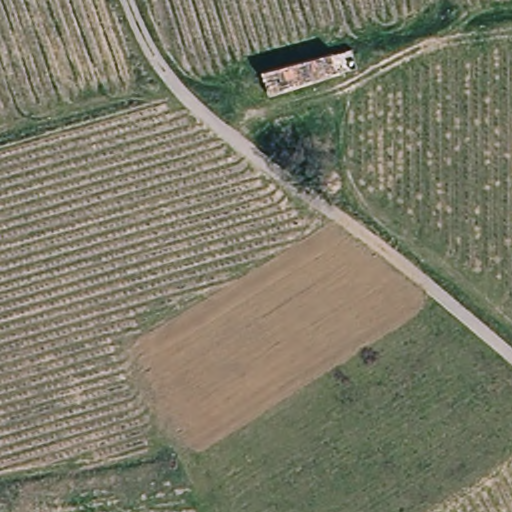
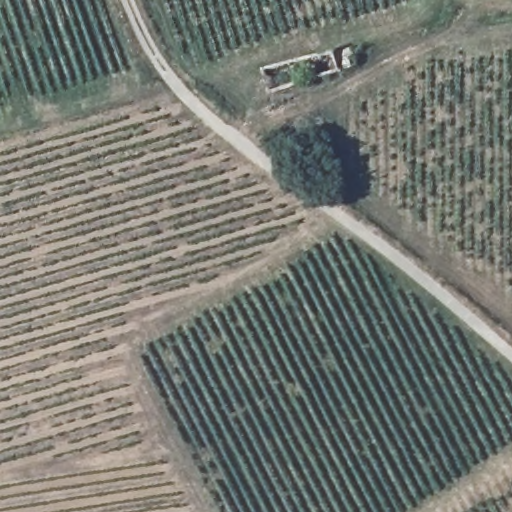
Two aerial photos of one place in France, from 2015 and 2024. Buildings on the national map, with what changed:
unchanged [(271,93),(262,71),(331,50),(336,74),(271,93)]

